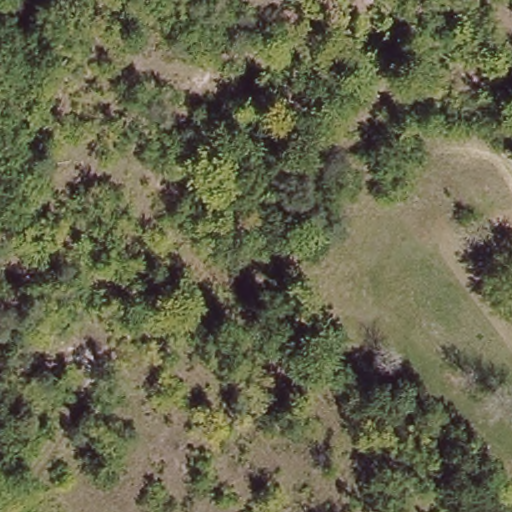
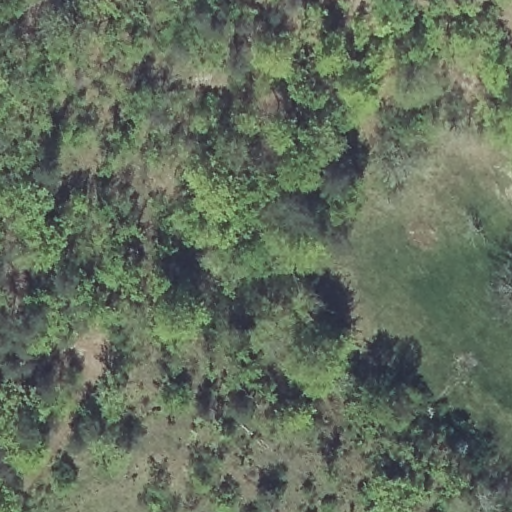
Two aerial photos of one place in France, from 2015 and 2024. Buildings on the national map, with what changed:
[]

